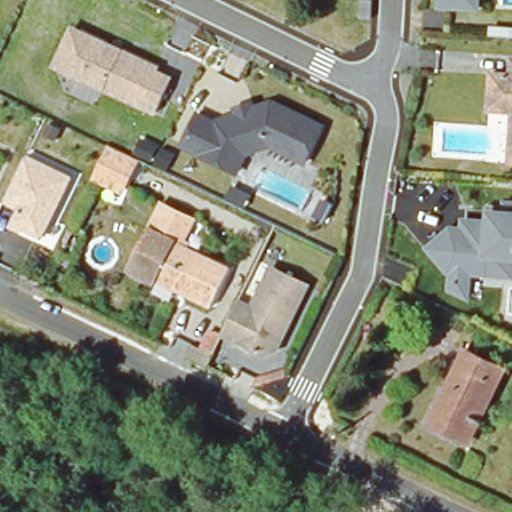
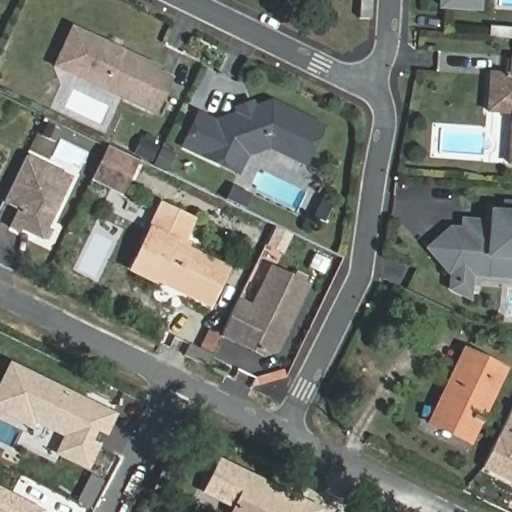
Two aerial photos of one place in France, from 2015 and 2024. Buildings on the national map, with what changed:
unchanged [(445,6),(445,0),(482,0),(482,8),(445,6)]
unchanged [(105,89),(57,67),(74,29),(81,31),(108,44),(122,51),(160,68),(158,71),(173,78),(157,113),(105,89)]
unchanged [(491,73),(511,75),(512,59),(512,112),(488,111),(491,73)]
unchanged [(222,165),(184,147),(199,116),(217,124),(235,110),(251,104),(272,102),(323,126),(306,163),(269,146),(247,155),(239,173),(222,165)]
unchanged [(512,126),(512,119),(512,164),(509,164),(512,126)]
unchanged [(136,164),(125,187),(99,174),(109,151),(136,164)]
unchanged [(72,177),(43,241),(24,231),(21,235),(10,229),(20,207),(7,201),(28,156),(72,177)]
unchanged [(493,266),(444,266),(430,249),(454,228),(463,228),(465,222),(492,223),(496,212),(505,212),(506,202),(512,203),(512,256),(493,255),(493,266)]
unchanged [(211,307),(131,268),(162,204),(179,212),(194,219),(181,245),(230,270),(211,307)]
unchanged [(305,288),(274,352),(262,356),(220,336),(236,303),(251,310),(270,271),(305,288)]
unchanged [(465,350),(504,370),(468,443),(429,423),(465,350)]
new [(10,362),(118,414),(107,437),(100,434),(96,443),(101,445),(88,472),(53,455),(63,437),(33,424),(30,428),(0,412),(0,381),(10,362)]
new [(512,407),(512,483),(481,468),(490,451),(498,435),(499,433),(512,407)]
new [(320,512),(230,512),(232,509),(202,494),(221,459),(321,509),(320,512)]
new [(45,511),(44,512),(0,512),(0,487),(45,511)]

